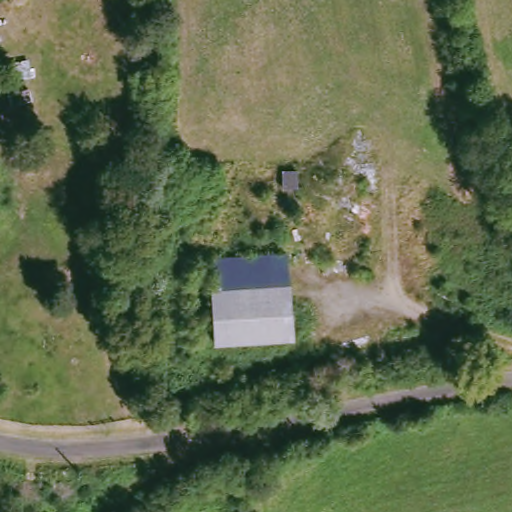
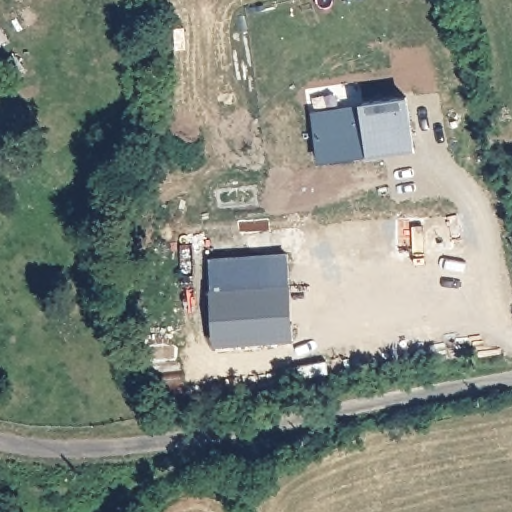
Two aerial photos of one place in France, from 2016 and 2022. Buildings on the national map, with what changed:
new [(364,107),(363,102),(405,96),(412,145),(320,158),(314,113),(364,107)]
unchanged [(220,288),(217,262),(293,254),(296,282),(220,288)]
unchanged [(302,338),(225,344),(220,288),(296,282),(302,338)]

